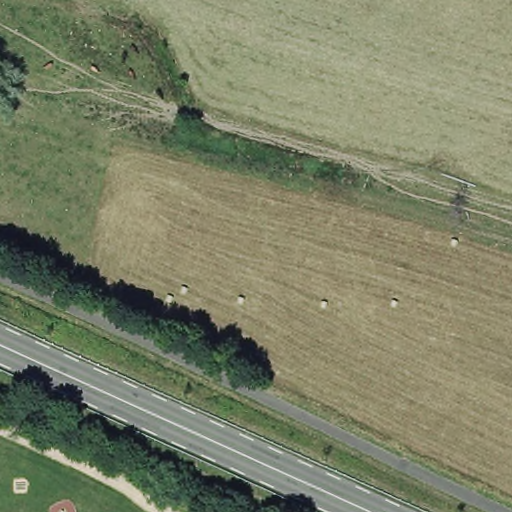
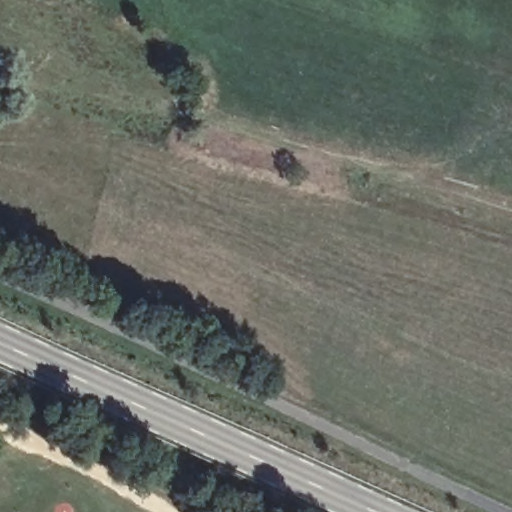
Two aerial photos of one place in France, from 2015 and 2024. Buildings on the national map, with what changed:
[]

